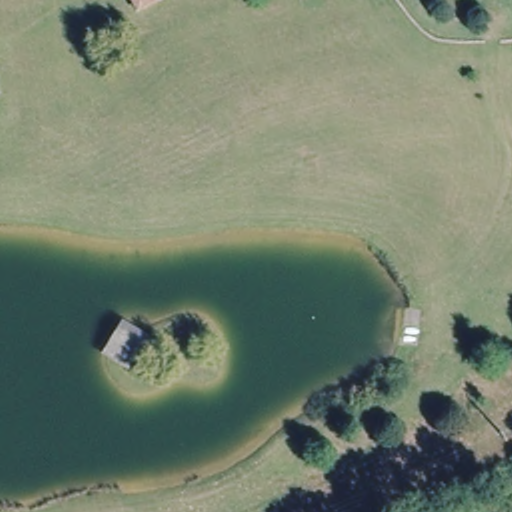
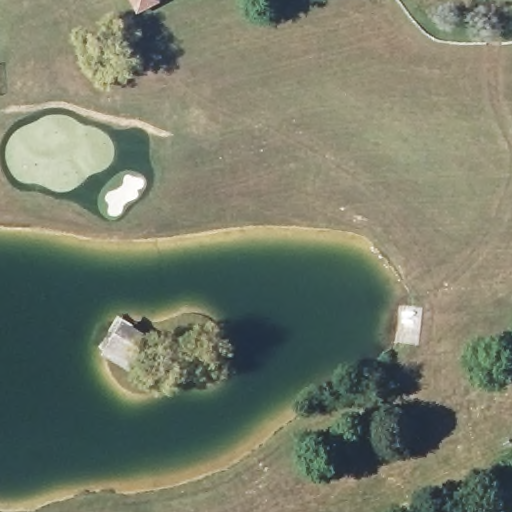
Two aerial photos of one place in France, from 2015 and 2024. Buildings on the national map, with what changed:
unchanged [(165,4),(135,17),(127,0),(163,0),(165,4)]

